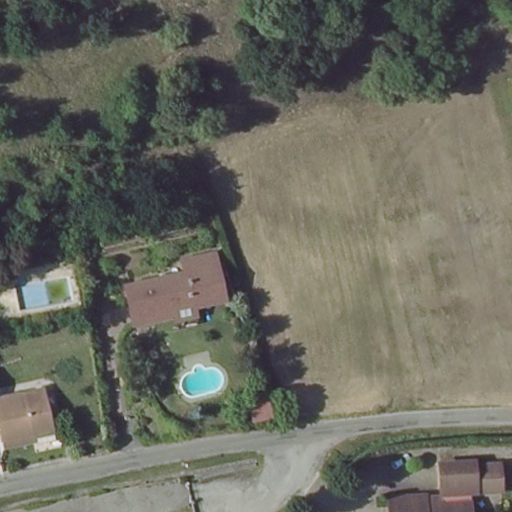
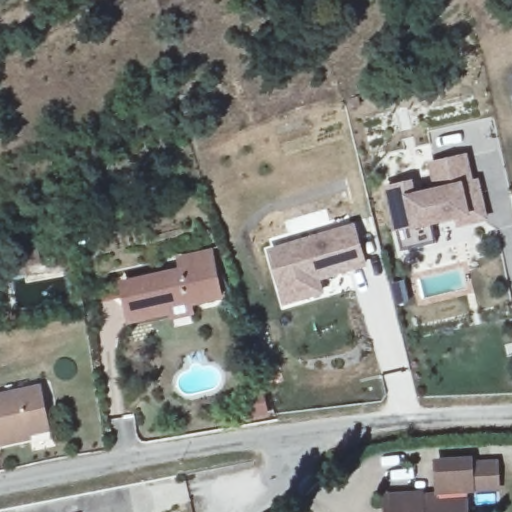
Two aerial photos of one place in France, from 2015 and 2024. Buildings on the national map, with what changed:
new [(489,220),(456,229),(455,220),(431,226),(436,245),(402,252),(398,232),(393,234),(383,189),(414,181),(416,193),(433,189),(428,164),(468,155),(473,181),(481,180),(489,220)]
new [(315,270),(321,292),(284,303),(269,251),(355,225),(366,263),(345,270),(317,278),(315,270)]
unchanged [(126,306),(122,279),(162,272),(165,280),(180,277),(177,259),(210,254),(218,301),(190,306),(188,302),(170,306),(173,315),(145,320),(130,322),(126,306)]
unchanged [(42,387),(49,435),(0,442),(0,440),(0,395),(42,387)]
unchanged [(382,498),(390,498),(436,495),(434,470),(433,462),(449,460),(465,458),(465,465),(495,463),(496,487),(464,488),(466,512),(383,512),(382,503),(382,498)]

